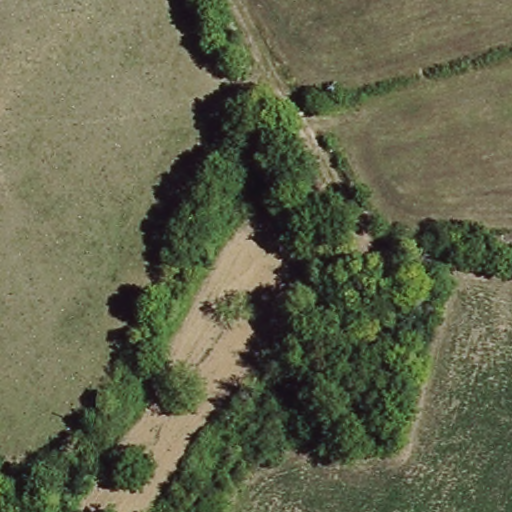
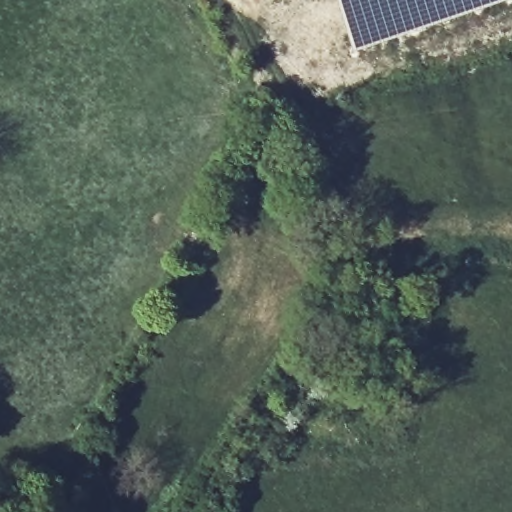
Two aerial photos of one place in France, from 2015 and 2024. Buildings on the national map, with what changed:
new [(353,55),(334,0),(511,0),(511,1),(353,55)]

